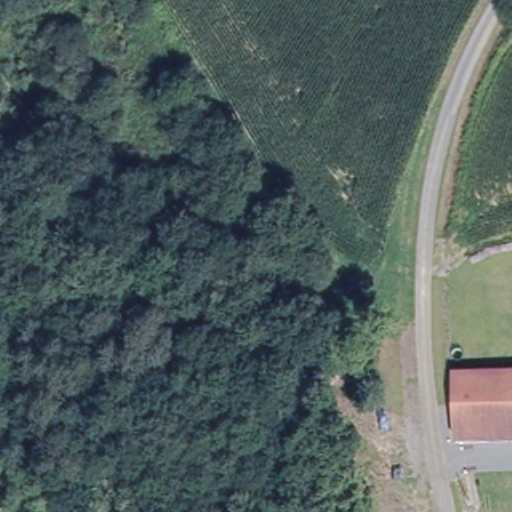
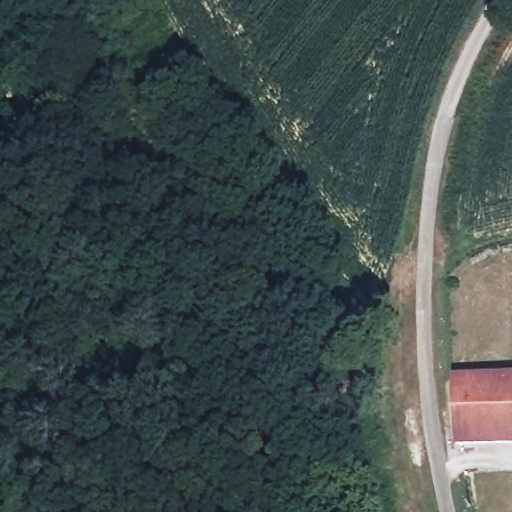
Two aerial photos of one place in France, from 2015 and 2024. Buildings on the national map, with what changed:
unchanged [(512,381),(512,439),(457,440),(455,383),(512,381)]

